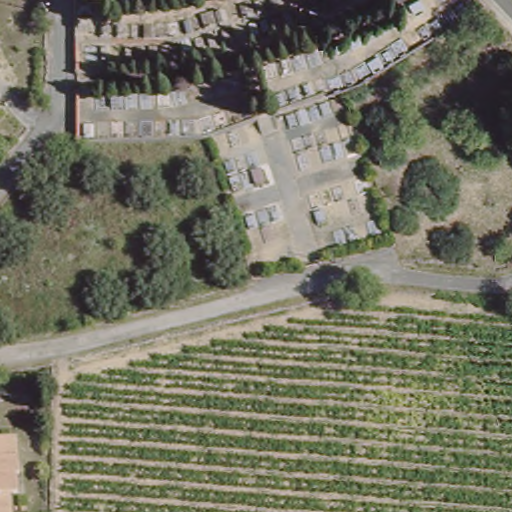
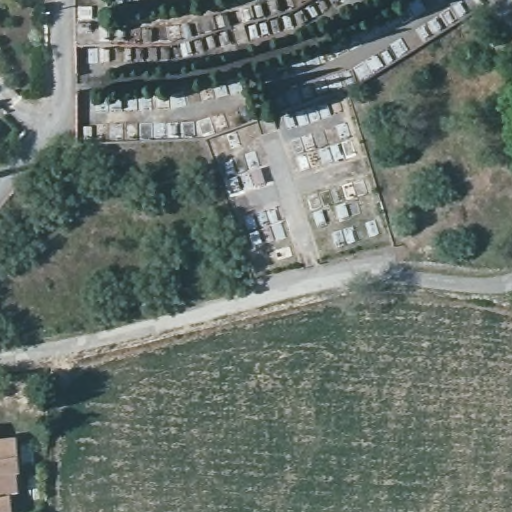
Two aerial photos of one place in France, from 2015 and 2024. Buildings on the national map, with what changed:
unchanged [(17,479),(12,480),(13,498),(6,498),(7,512),(0,512),(0,442),(14,442),(17,479)]

